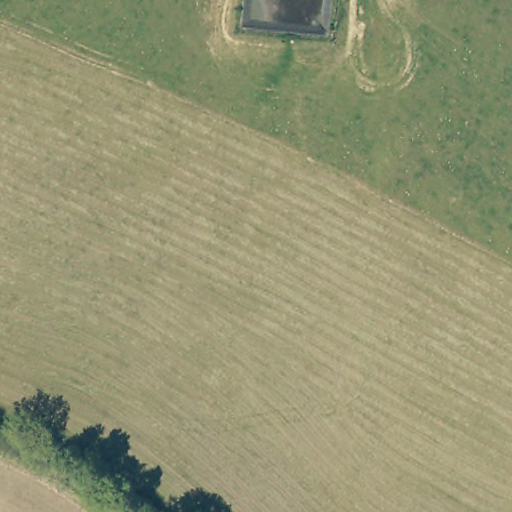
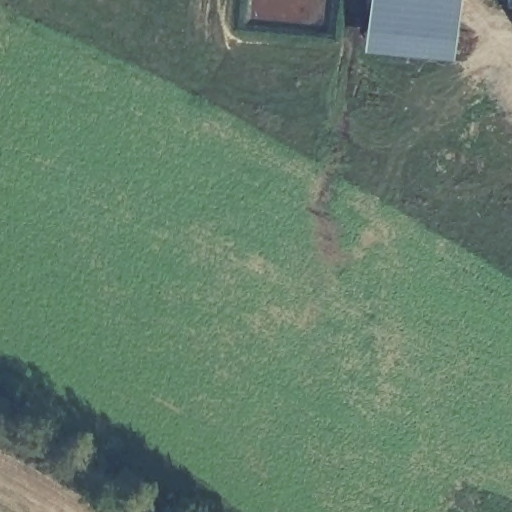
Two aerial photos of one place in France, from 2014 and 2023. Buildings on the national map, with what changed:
new [(366,0),(456,0),(449,61),(362,54),(366,0)]

